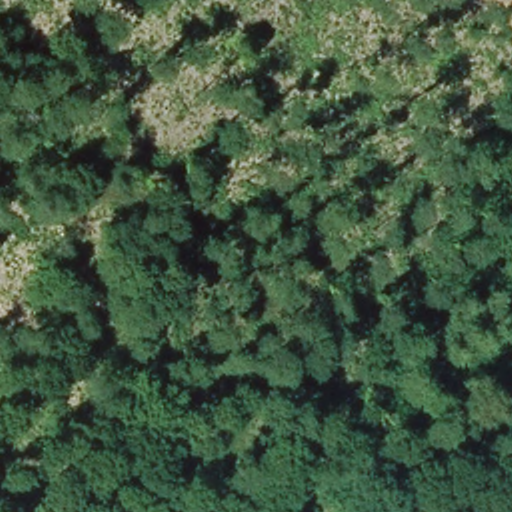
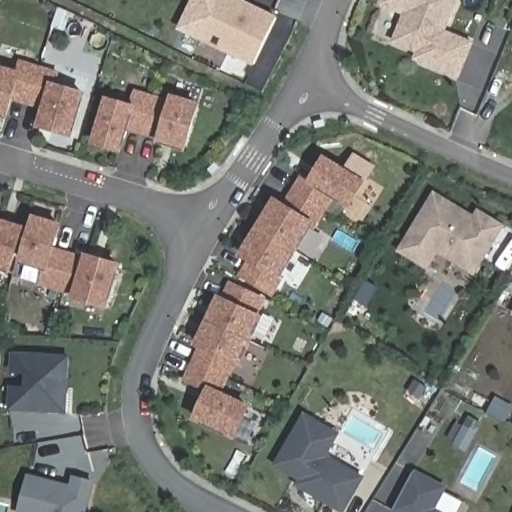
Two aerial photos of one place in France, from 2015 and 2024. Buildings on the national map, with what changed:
new [(256,64),(201,38),(217,0),(240,0),(276,18),(256,64)]
new [(458,77),(430,65),(432,57),(395,43),(406,14),(384,4),(385,0),(456,0),(445,31),(472,42),(458,77)]
new [(20,73),(23,63),(58,73),(55,85),(85,94),(73,135),(42,125),(47,107),(14,96),(8,116),(0,113),(0,67),(20,73)]
new [(186,149),(161,141),(162,137),(129,127),(122,150),(96,142),(109,100),(134,107),(138,93),(173,103),(174,98),(199,105),(186,149)]
new [(350,205),(333,195),(315,225),(313,223),(281,275),(283,277),(273,292),(244,274),(252,260),(243,254),(276,200),(285,206),(304,175),(312,180),(325,158),(364,182),(350,205)]
new [(438,250),(428,267),(400,250),(435,192),(475,216),(479,209),(504,225),(475,273),(438,250)]
new [(59,225),(52,249),(86,259),(87,255),(118,265),(106,306),(75,297),(76,293),(41,282),(46,268),(22,261),(34,218),(59,225)]
new [(23,228),(10,270),(0,267),(0,221),(23,228)]
new [(235,436),(196,418),(209,389),(187,379),(202,346),(198,344),(219,298),(223,299),(231,284),(263,298),(256,314),(261,317),(239,363),(234,361),(219,393),(249,407),(235,436)]
new [(68,357),(65,412),(10,409),(11,387),(26,388),(27,373),(12,372),(13,353),(68,357)]
new [(277,464),(305,415),(337,433),(326,453),(327,457),(362,477),(343,510),(299,484),(305,475),(302,478),(296,475),(277,464)]
new [(413,470),(444,487),(432,508),(439,512),(397,512),(392,509),(413,470)]
new [(19,512),(29,475),(72,487),(75,477),(93,482),(85,512),(19,512)]

